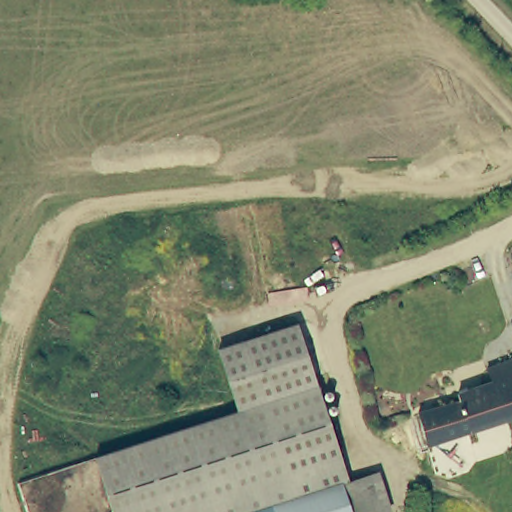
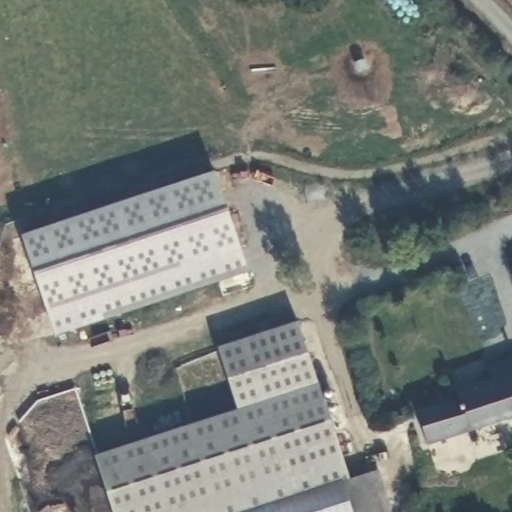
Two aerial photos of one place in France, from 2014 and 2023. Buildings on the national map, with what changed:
new [(214,173),(248,273),(55,337),(22,237),(214,173)]
unchanged [(99,460),(242,413),(221,351),(299,326),(351,483),(262,512),(117,512),(99,460)]
unchanged [(512,359),(512,418),(428,444),(417,409),(461,398),(458,390),(494,379),(490,366),(512,359)]
unchanged [(372,476),(384,512),(262,512),(351,483),(372,476)]

